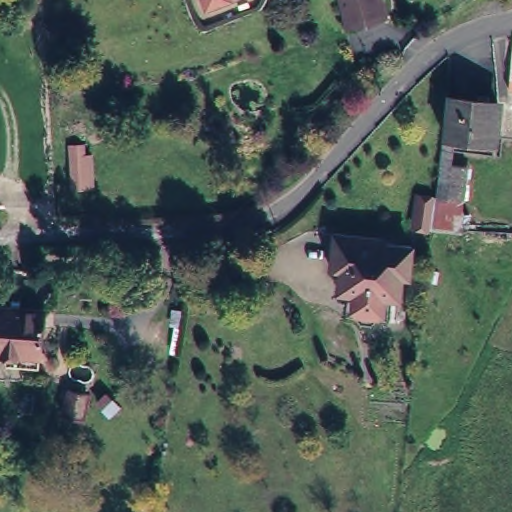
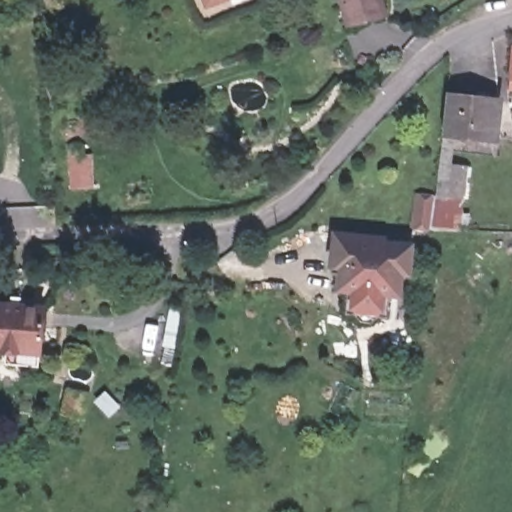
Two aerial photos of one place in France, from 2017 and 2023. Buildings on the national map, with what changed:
unchanged [(202,6),(200,0),(217,0),(202,6)]
unchanged [(391,14),(357,25),(349,0),(386,0),(391,14)]
unchanged [(512,89),(512,141),(458,136),(445,135),(433,134),(442,86),(512,89)]
unchanged [(453,163),(472,166),(472,198),(462,197),(462,211),(470,211),(471,232),(412,229),(416,189),(436,191),(445,135),(458,136),(453,163)]
unchanged [(85,153),(85,178),(70,179),(69,153),(85,153)]
unchanged [(420,236),(412,295),(393,291),(389,320),(351,315),(354,288),(327,284),(330,227),(420,236)]
unchanged [(0,342),(0,299),(53,303),(50,347),(0,342)]
unchanged [(85,395),(80,416),(63,412),(67,390),(85,395)]

